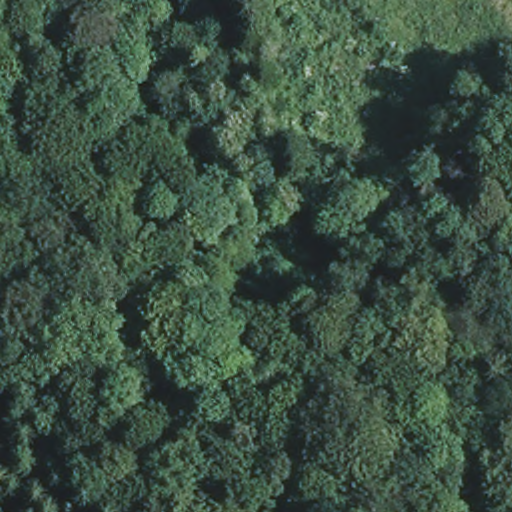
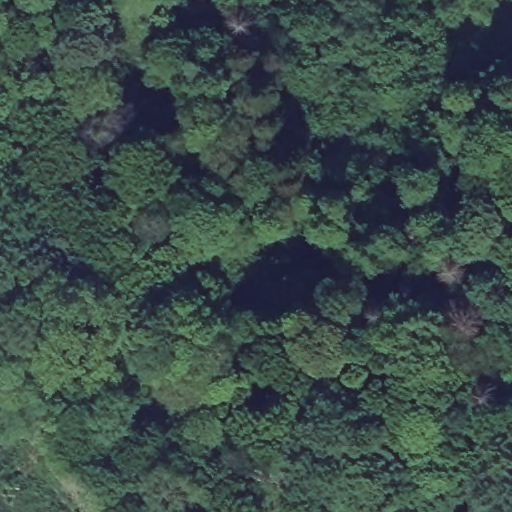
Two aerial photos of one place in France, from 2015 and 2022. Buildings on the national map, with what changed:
unchanged [(198,35),(181,0),(210,0),(222,26),(198,35)]

